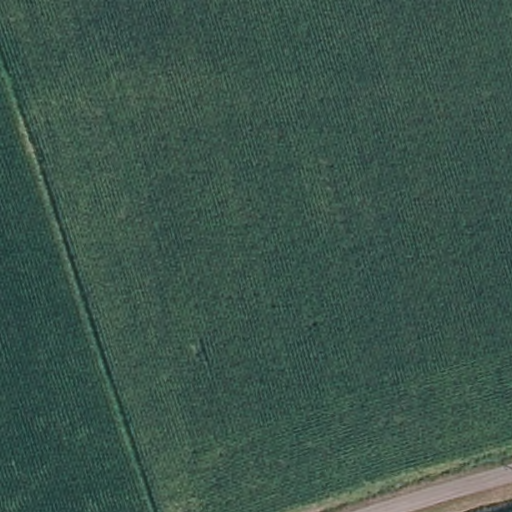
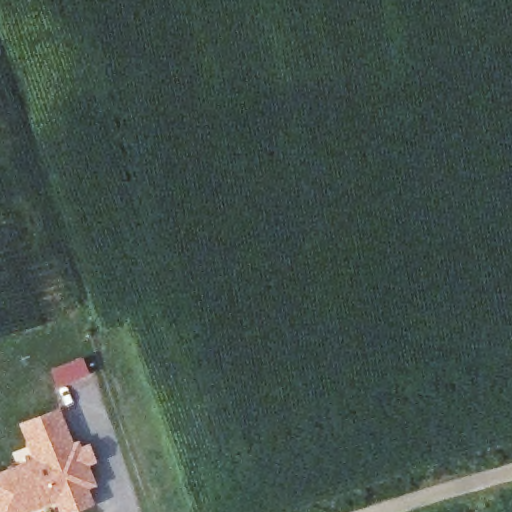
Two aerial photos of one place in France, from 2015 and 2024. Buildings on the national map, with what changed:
new [(19,423),(58,406),(73,441),(74,441),(79,439),(81,445),(89,442),(97,463),(90,466),(97,485),(89,487),(95,505),(76,512),(60,512),(55,500),(25,512),(0,512),(0,471),(32,459),(19,423)]

